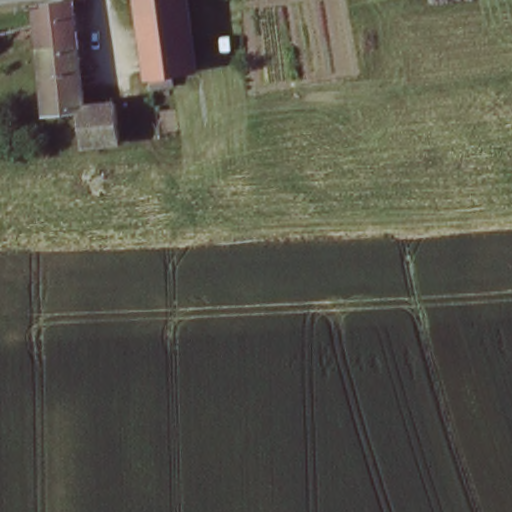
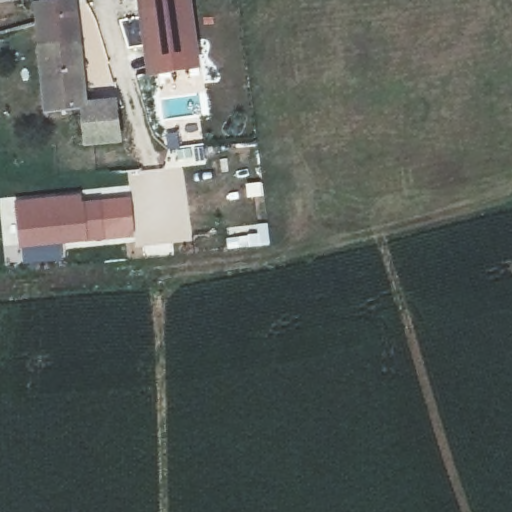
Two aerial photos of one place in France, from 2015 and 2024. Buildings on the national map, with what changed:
unchanged [(114,100),(118,141),(80,143),(79,108),(48,109),(43,20),(42,3),(67,0),(81,0),(86,99),(114,100)]
unchanged [(173,80),(149,83),(139,0),(189,0),(197,61),(172,64),(173,80)]
new [(21,264),(18,249),(13,200),(81,194),(82,200),(113,197),(112,193),(130,191),(137,238),(134,238),(63,245),(64,260),(21,264)]

